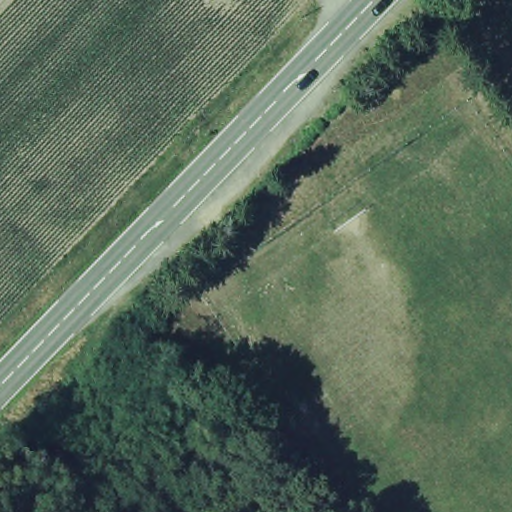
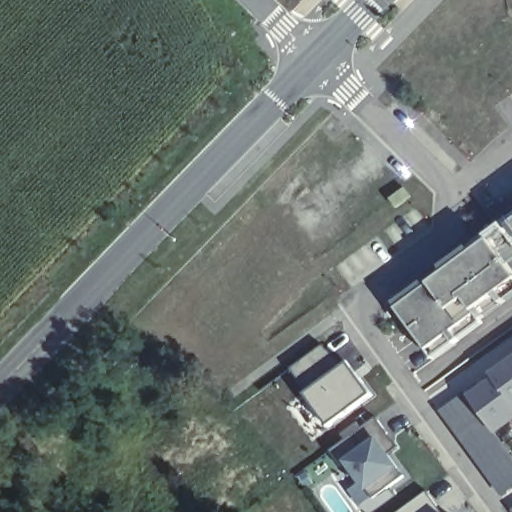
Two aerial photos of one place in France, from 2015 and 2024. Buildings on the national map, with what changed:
new [(405,188),(412,196),(397,208),(390,199),(405,188)]
new [(507,262),(512,269),(512,296),(482,320),(484,322),(433,357),(428,350),(397,309),(394,304),(487,235),(500,225),(512,217),(512,260),(507,262)]
new [(324,345),(342,366),(305,392),(290,369),(324,345)]
new [(494,382),(493,374),(512,361),(512,422),(497,433),(470,397),(494,382)]
new [(342,366),(347,362),(374,394),(329,425),(305,392),(342,366)]
new [(461,395),(497,435),(512,456),(512,489),(500,498),(438,411),(461,395)]
new [(374,499),(347,463),(342,467),(330,451),(377,417),(388,433),(399,448),(389,455),(405,477),(374,499)]
new [(400,512),(427,492),(442,512),(400,512)]

